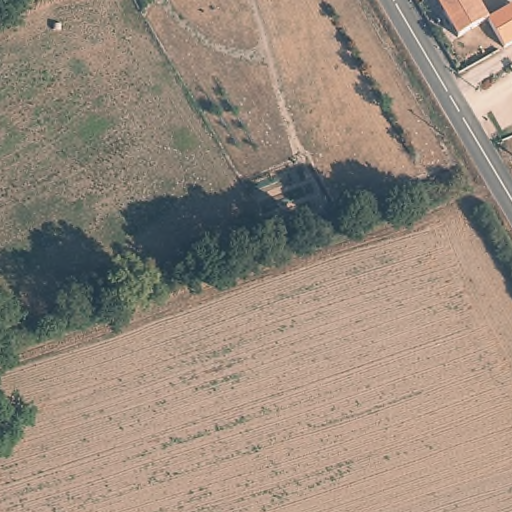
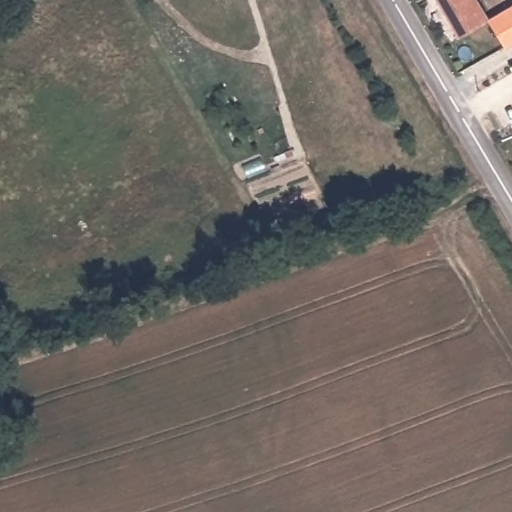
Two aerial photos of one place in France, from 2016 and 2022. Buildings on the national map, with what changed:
unchanged [(457,42),(435,0),(472,0),(485,25),(457,42)]
unchanged [(503,40),(492,21),(485,25),(472,0),(512,0),(512,36),(503,40)]

